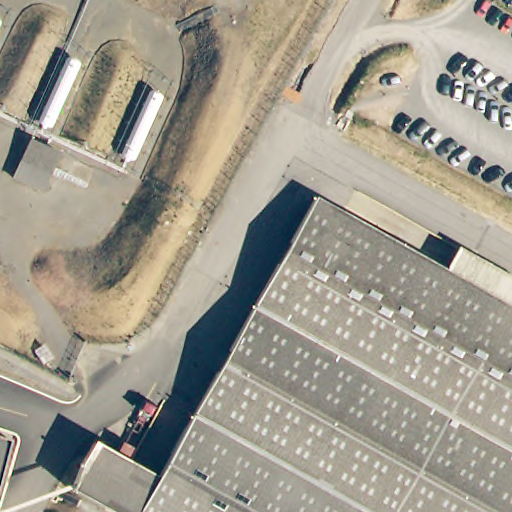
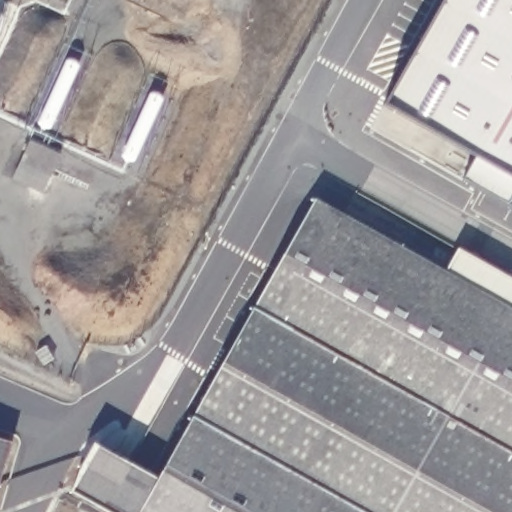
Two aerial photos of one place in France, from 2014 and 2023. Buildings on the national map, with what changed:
new [(461,179),(474,154),(385,104),(444,0),(512,0),(512,208),(461,179)]
unchanged [(53,179),(23,165),(34,142),(64,156),(53,179)]
unchanged [(121,478),(133,462),(159,479),(315,200),(444,269),(459,249),(512,279),(512,512),(105,512),(72,492),(89,460),(121,478)]
unchanged [(0,464),(0,438),(6,439),(0,464)]

